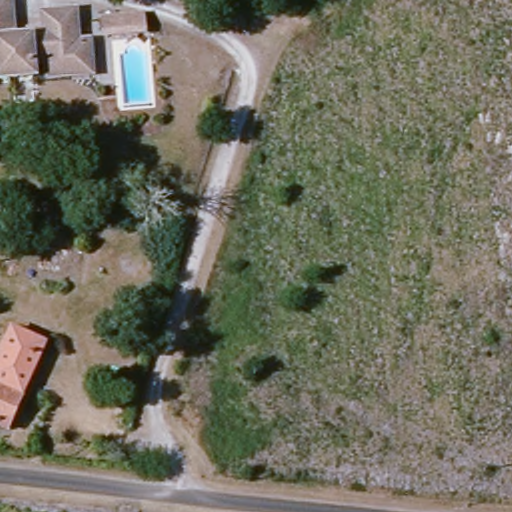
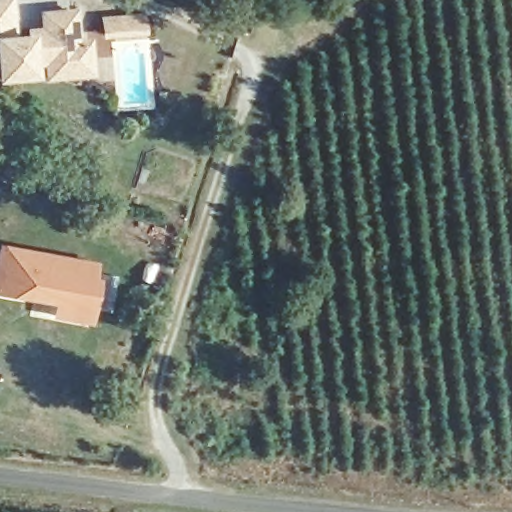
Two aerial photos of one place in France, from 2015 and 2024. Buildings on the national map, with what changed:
unchanged [(58,85),(45,87),(41,63),(24,66),(26,79),(0,84),(0,0),(4,0),(6,13),(9,37),(40,34),(39,27),(38,15),(70,11),(71,24),(74,43),(85,41),(87,52),(90,79),(58,85)]
unchanged [(139,8),(141,23),(108,27),(106,13),(139,8)]
demolished [(20,203),(69,210),(64,249),(82,251),(76,288),(6,279),(9,263),(3,261),(0,268),(0,238),(13,241),(20,203)]
new [(96,278),(100,279),(91,326),(49,320),(52,306),(0,297),(0,245),(98,263),(96,278)]
demolished [(3,430),(0,429),(0,348),(6,334),(40,351),(19,394),(3,430)]

